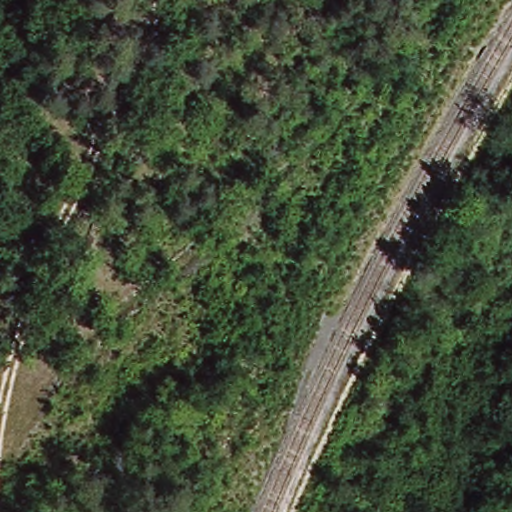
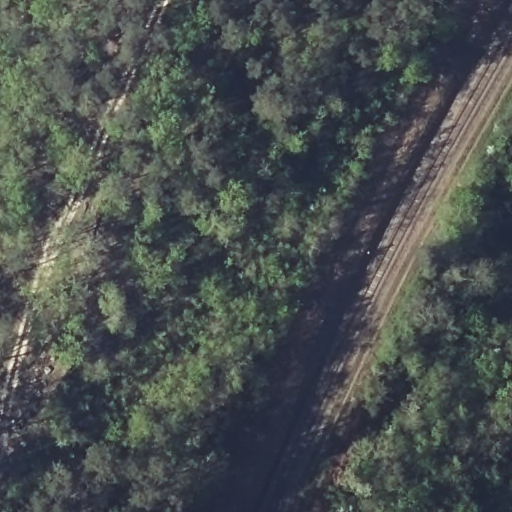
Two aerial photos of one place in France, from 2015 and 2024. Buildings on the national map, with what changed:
[]

